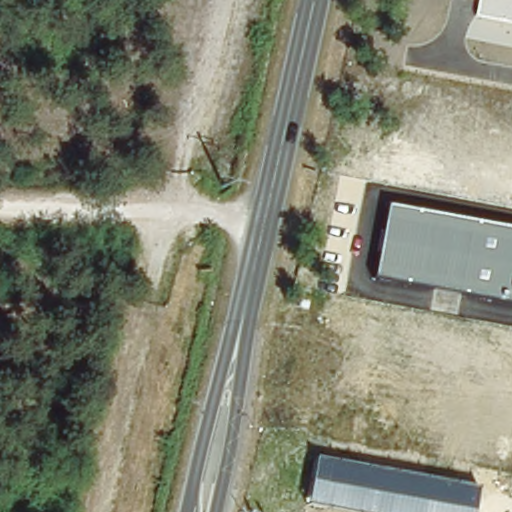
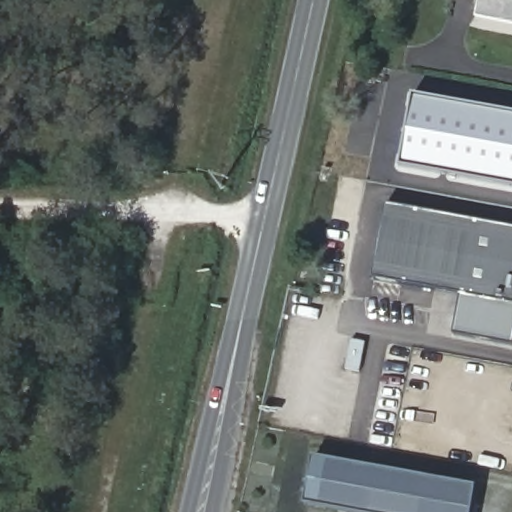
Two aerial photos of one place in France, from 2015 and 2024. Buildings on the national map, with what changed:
unchanged [(478,0),(512,0),(512,25),(475,18),(478,0)]
new [(512,117),(512,192),(400,170),(413,98),(512,117)]
unchanged [(391,205),(512,228),(512,305),(377,278),(391,205)]
new [(463,295),(512,305),(512,345),(456,334),(463,295)]
unchanged [(473,512),(349,512),(306,504),(316,458),(478,486),(473,512)]

